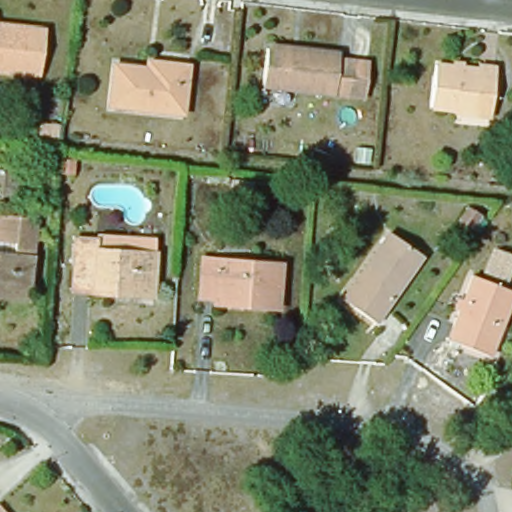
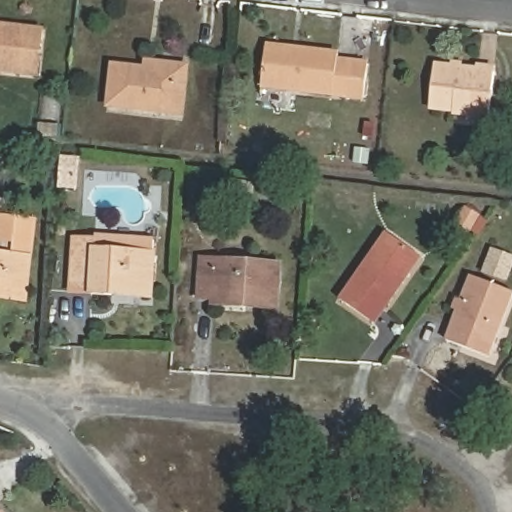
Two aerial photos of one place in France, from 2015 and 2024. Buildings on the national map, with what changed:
unchanged [(47,29),(43,72),(0,67),(0,22),(47,29)]
unchanged [(284,50),(285,46),(331,51),(330,56),(361,60),(357,94),(257,83),(261,48),(284,50)]
unchanged [(111,67),(144,71),(144,63),(185,67),(180,115),(107,107),(111,67)]
unchanged [(485,117),(451,114),(451,109),(429,106),(433,65),(489,71),(485,117)]
unchanged [(37,224),(30,302),(0,299),(0,220),(37,224)]
unchanged [(386,237),(419,261),(372,324),(339,301),(386,237)]
unchanged [(108,297),(69,295),(73,241),(94,242),(93,252),(153,257),(150,292),(149,300),(108,297)]
unchanged [(512,270),(508,282),(485,274),(491,255),(512,262),(512,270)]
unchanged [(211,298),(198,297),(200,262),(277,268),(275,312),(246,310),(211,308),(211,298)]
unchanged [(512,296),(512,298),(490,356),(447,342),(470,282),(512,296)]

